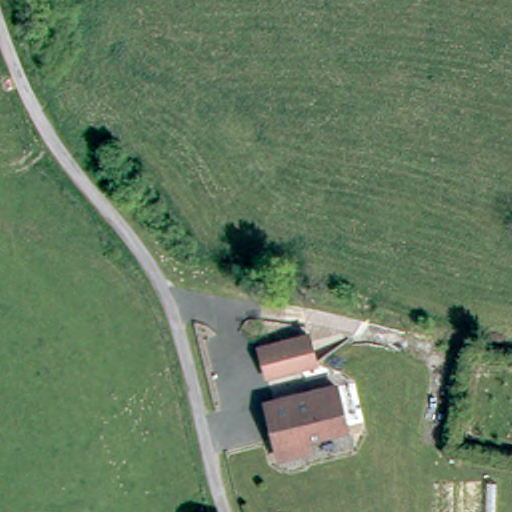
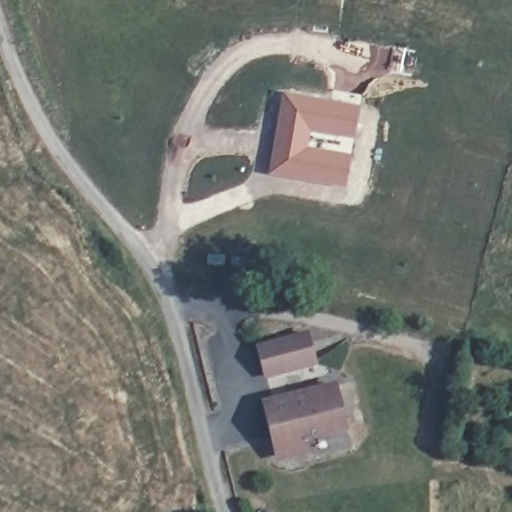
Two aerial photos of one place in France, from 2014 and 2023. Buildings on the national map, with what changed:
new [(274,172),(288,97),(360,110),(346,185),(274,172)]
unchanged [(318,361),(270,372),(262,342),(310,330),(318,361)]
unchanged [(347,422),(341,428),(307,435),(309,443),(303,450),(285,452),(276,448),(265,398),(338,383),(347,422)]

